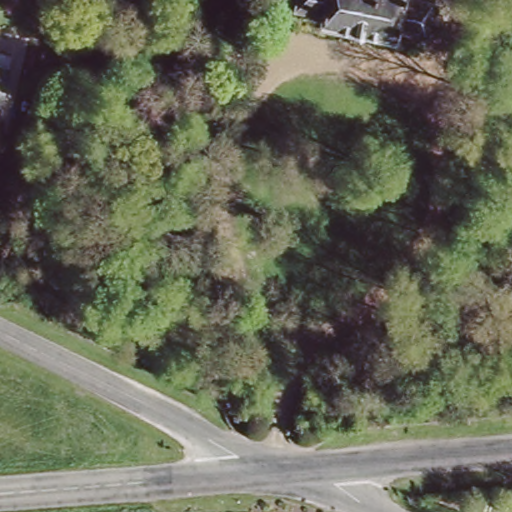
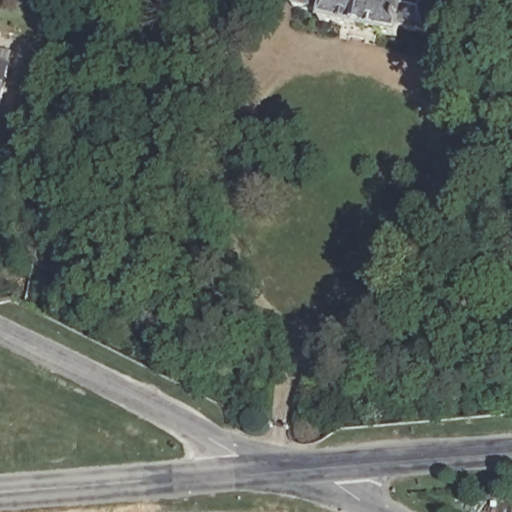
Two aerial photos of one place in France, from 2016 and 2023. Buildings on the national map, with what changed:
unchanged [(294,0),(423,0),(436,3),(429,33),(402,27),(399,40),(320,23),(321,15),(293,7),(294,0)]
unchanged [(12,52),(8,70),(0,101),(0,49),(12,52)]

